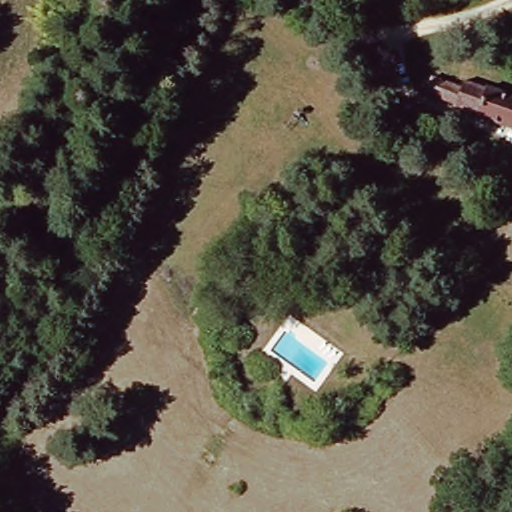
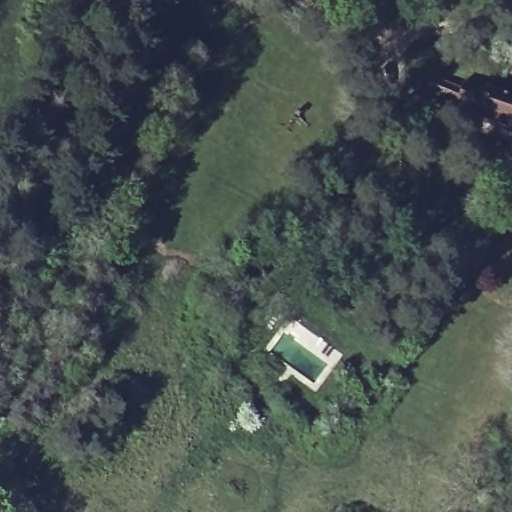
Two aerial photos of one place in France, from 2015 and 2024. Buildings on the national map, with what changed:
unchanged [(475,115),(452,108),(453,104),(423,94),(430,79),(458,89),(460,83),(512,101),(512,133),(473,119),(475,115)]
unchanged [(305,363),(310,351),(321,356),(316,368),(305,363)]

